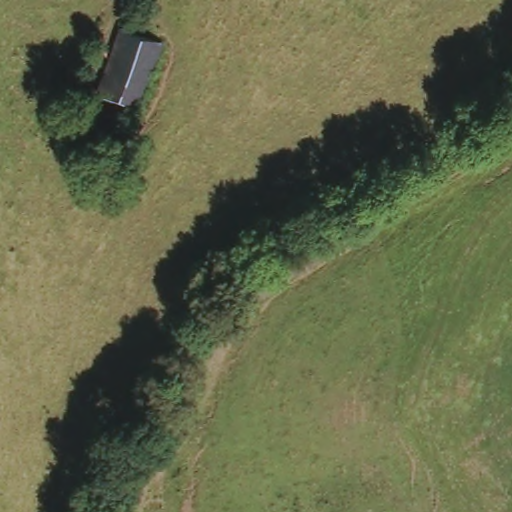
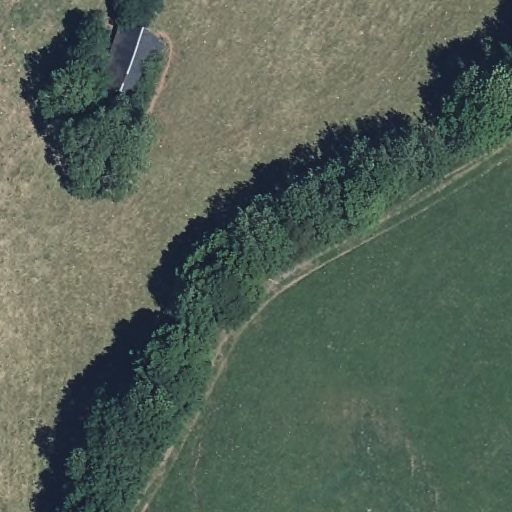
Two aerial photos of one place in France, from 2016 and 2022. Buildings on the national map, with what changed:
unchanged [(92,89),(125,24),(164,42),(132,107),(92,89)]

